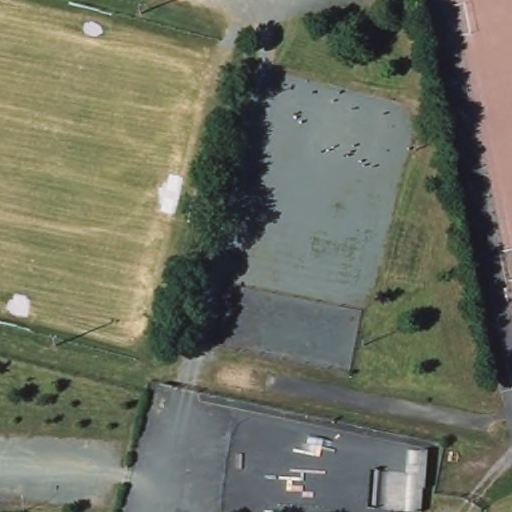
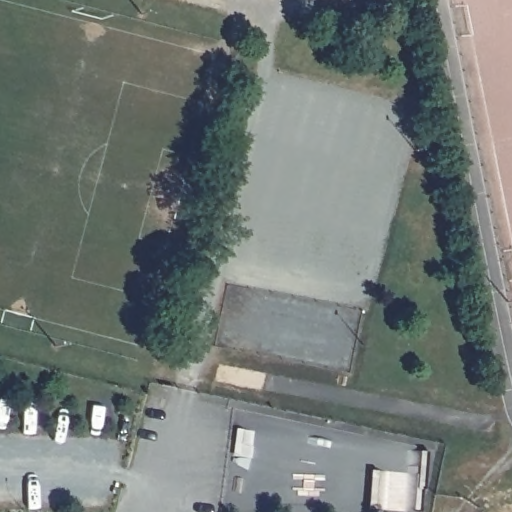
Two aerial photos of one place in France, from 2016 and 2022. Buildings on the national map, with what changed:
[]

